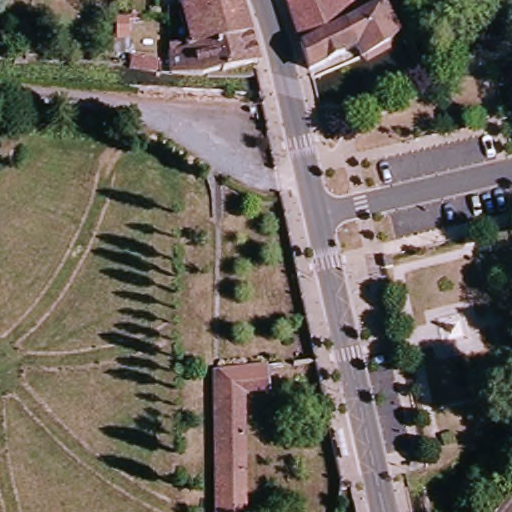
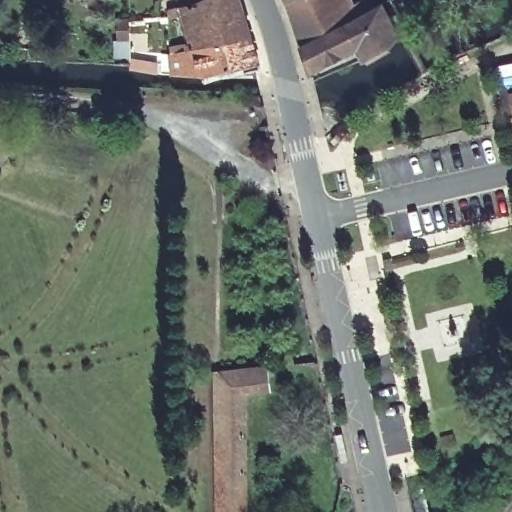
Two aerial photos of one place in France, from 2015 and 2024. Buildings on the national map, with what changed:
unchanged [(207,1),(209,0),(249,0),(260,35),(179,54),(179,46),(200,42),(193,14),(176,19),(175,8),(186,6),(207,1)]
unchanged [(182,5),(176,5),(176,0),(181,0),(182,5)]
unchanged [(185,0),(209,0),(207,1),(186,6),(185,0)]
unchanged [(296,0),(377,0),(380,5),(351,21),(311,42),(296,0)]
unchanged [(406,27),(399,38),(370,54),(366,46),(351,21),(380,5),(389,0),(390,0),(406,27)]
unchanged [(396,5),(393,0),(401,0),(402,2),(396,5)]
unchanged [(320,66),(311,42),(351,21),(366,46),(320,66)]
unchanged [(260,35),(268,64),(261,66),(214,75),(181,74),(179,54),(260,35)]
unchanged [(156,68),(154,77),(132,71),(132,62),(156,68)]
unchanged [(388,266),(390,275),(382,277),(381,268),(388,266)]
unchanged [(256,512),(222,512),(220,370),(277,362),(279,392),(255,395),(256,512)]

